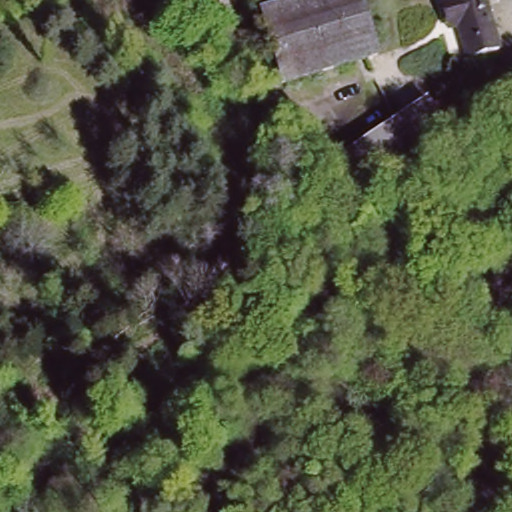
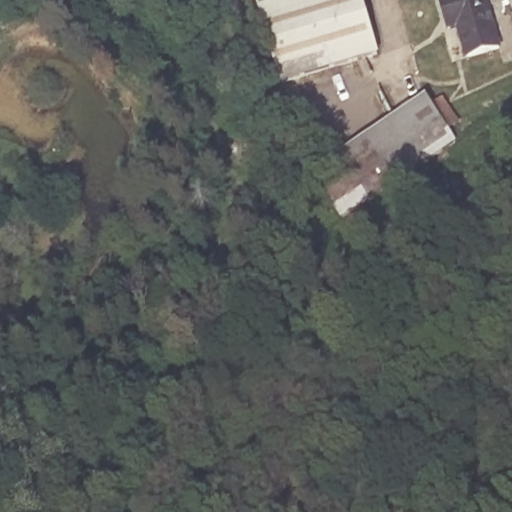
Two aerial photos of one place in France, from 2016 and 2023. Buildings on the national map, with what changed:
unchanged [(287,88),(260,4),(271,0),(312,0),(312,1),(317,0),(363,0),(382,58),(287,88)]
unchanged [(450,16),(445,0),(491,0),(504,41),(470,53),(457,14),(450,16)]
unchanged [(442,95),(451,90),(462,111),(454,116),(462,130),(337,200),(312,155),(437,86),(442,95)]

